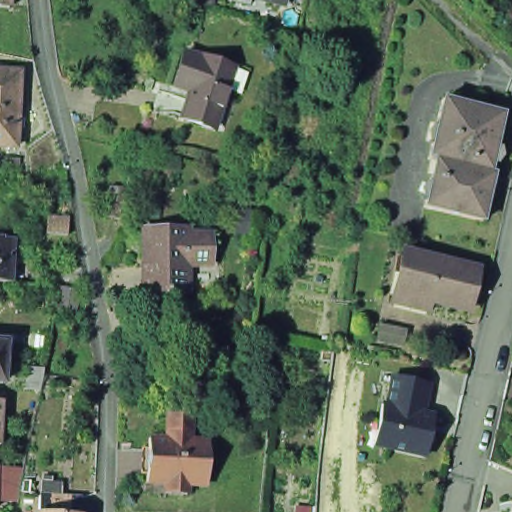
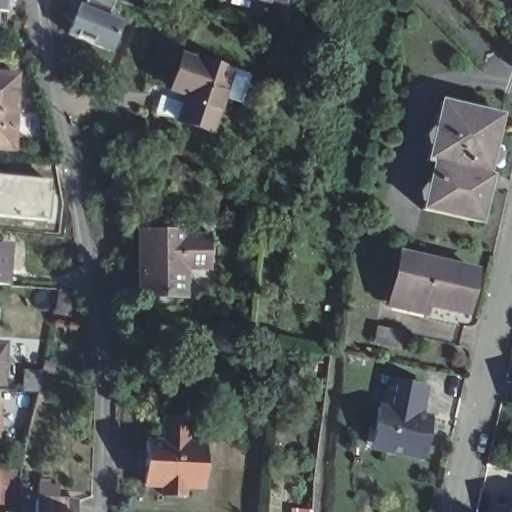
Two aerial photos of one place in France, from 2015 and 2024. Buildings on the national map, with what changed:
unchanged [(0,4),(0,0),(9,0),(9,5),(0,4)]
new [(67,16),(72,1),(77,3),(82,5),(83,0),(112,0),(106,15),(120,20),(109,48),(66,31),(71,20),(66,17),(67,16)]
unchanged [(277,0),(287,0),(287,2),(277,0)]
unchanged [(219,136),(183,125),(193,100),(177,95),(187,63),(202,67),(202,66),(205,67),(236,76),(219,136)]
unchanged [(22,148),(0,147),(0,72),(25,74),(22,148)]
unchanged [(450,102),(510,116),(499,166),(440,149),(450,102)]
unchanged [(497,174),(505,175),(502,190),(498,190),(490,224),(432,210),(438,180),(445,182),(450,164),(437,161),(440,149),(499,166),(497,174)]
new [(52,222),(0,218),(0,176),(53,181),(52,222)]
unchanged [(105,214),(107,187),(120,188),(117,215),(105,214)]
demolished [(44,219),(65,221),(62,235),(42,233),(44,219)]
unchanged [(139,266),(140,227),(184,228),(185,234),(197,234),(207,234),(208,265),(193,265),(185,265),(185,293),(148,292),(139,292),(139,266)]
unchanged [(7,278),(0,278),(0,235),(10,236),(7,278)]
unchanged [(393,299),(395,290),(405,246),(479,263),(469,306),(429,297),(427,306),(393,299)]
unchanged [(53,307),(56,285),(69,286),(67,308),(53,307)]
unchanged [(0,342),(5,342),(2,383),(0,383),(0,342)]
unchanged [(21,371),(38,372),(39,377),(35,391),(19,390),(21,371)]
unchanged [(374,425),(378,405),(383,405),(389,376),(425,384),(420,413),(425,414),(430,415),(427,432),(422,455),(380,447),(370,445),(374,425)]
unchanged [(210,441),(209,485),(191,485),(190,495),(170,495),(170,483),(152,482),(154,440),(171,440),(170,431),(172,416),(195,417),(194,431),(194,441),(210,441)]
unchanged [(15,505),(0,504),(0,471),(19,471),(15,505)]
unchanged [(35,505),(35,487),(52,488),(76,490),(75,507),(75,512),(34,512),(35,505)]

